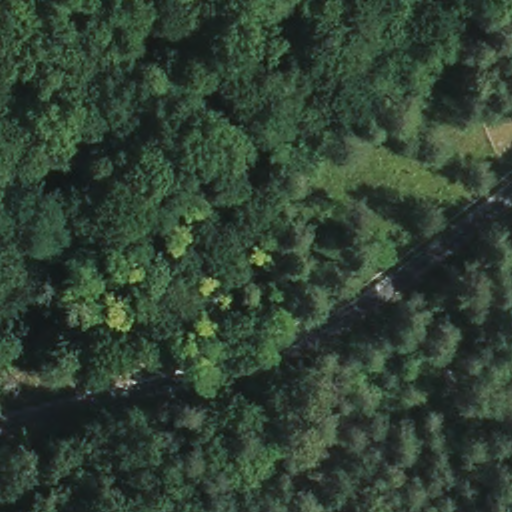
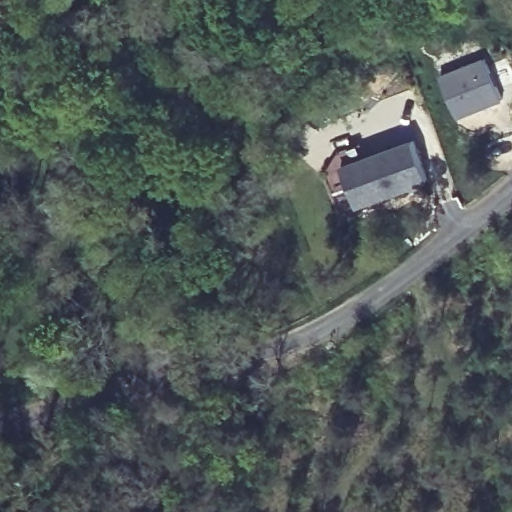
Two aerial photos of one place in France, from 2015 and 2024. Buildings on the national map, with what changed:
new [(441,74),(485,57),(502,100),(458,118),(441,74)]
new [(427,182),(357,208),(340,215),(326,175),(338,151),(358,144),(362,156),(411,139),(427,182)]

